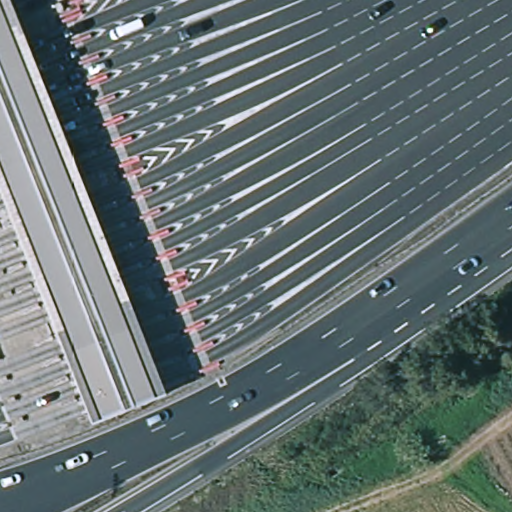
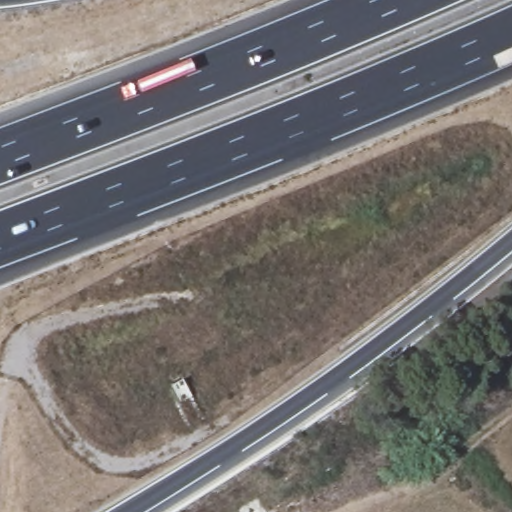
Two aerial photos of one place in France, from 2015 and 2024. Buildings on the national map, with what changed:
demolished [(0,191),(0,0),(8,0),(169,404),(96,433),(0,191)]

